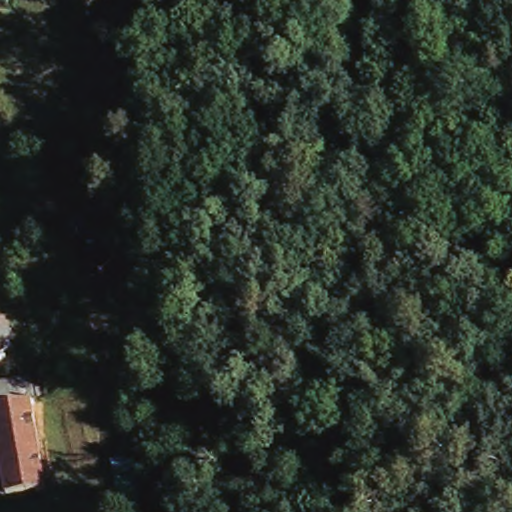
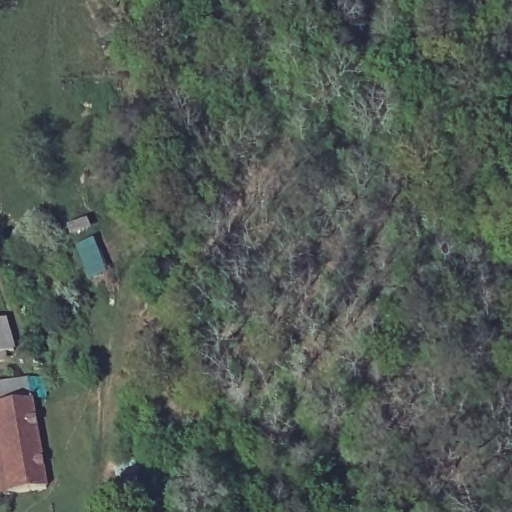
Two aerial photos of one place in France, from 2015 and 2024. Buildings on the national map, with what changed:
unchanged [(0,349),(0,315),(1,315),(10,346),(0,349)]
unchanged [(24,375),(41,483),(0,490),(0,378),(24,375)]

